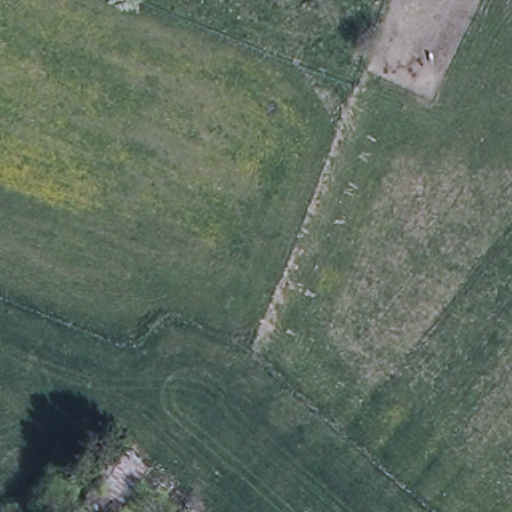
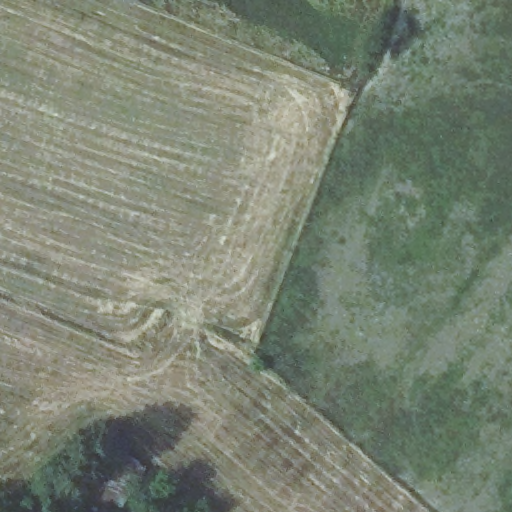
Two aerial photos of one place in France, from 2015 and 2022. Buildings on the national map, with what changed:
unchanged [(117,444),(148,469),(120,512),(89,512),(75,500),(117,444)]

